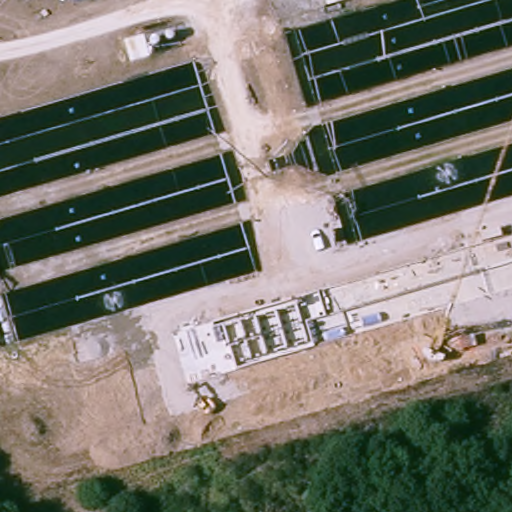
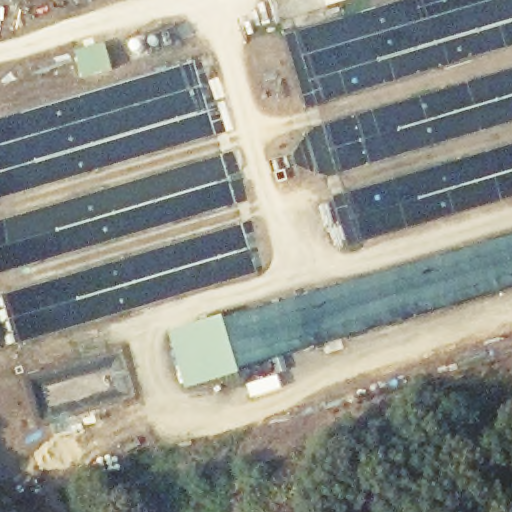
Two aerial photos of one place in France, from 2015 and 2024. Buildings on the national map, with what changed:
new [(238,373),(187,388),(168,332),(221,315),(238,373)]

